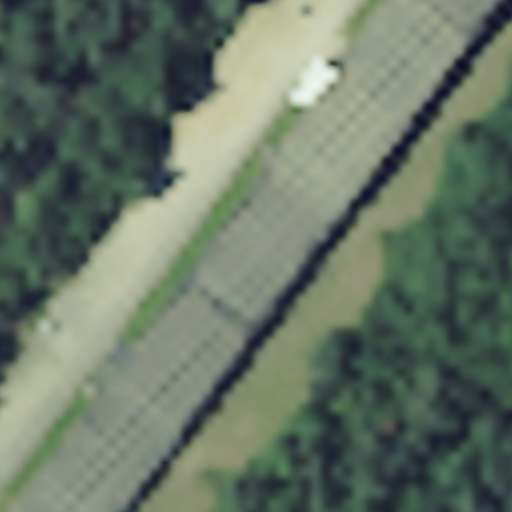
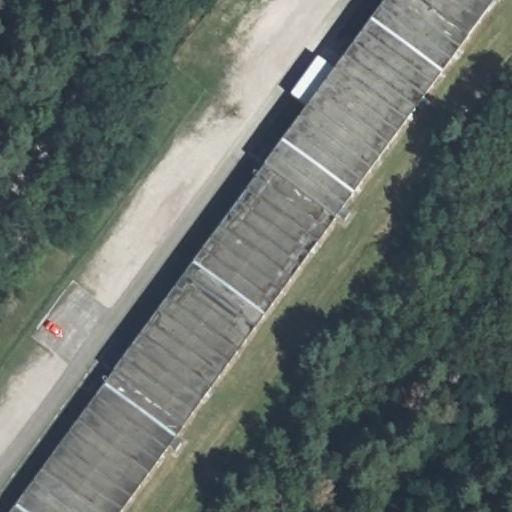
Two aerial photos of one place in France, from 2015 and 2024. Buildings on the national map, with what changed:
unchanged [(512,0),(512,1),(134,512),(16,512),(389,0),(512,0)]

